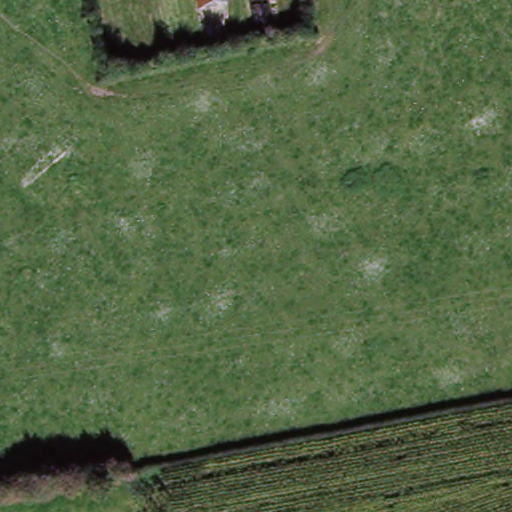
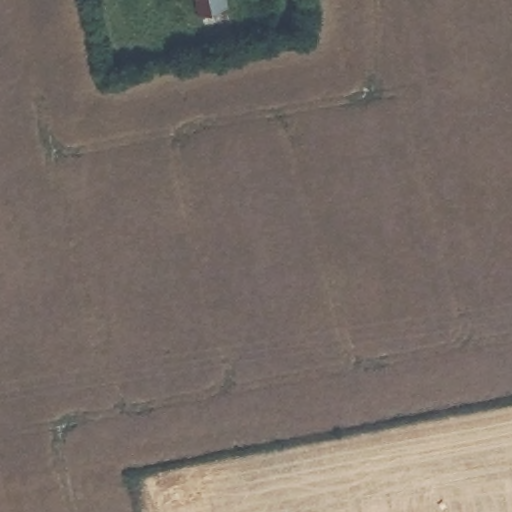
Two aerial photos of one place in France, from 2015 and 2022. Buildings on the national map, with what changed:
unchanged [(201,0),(227,0),(227,3),(203,7),(201,0)]

